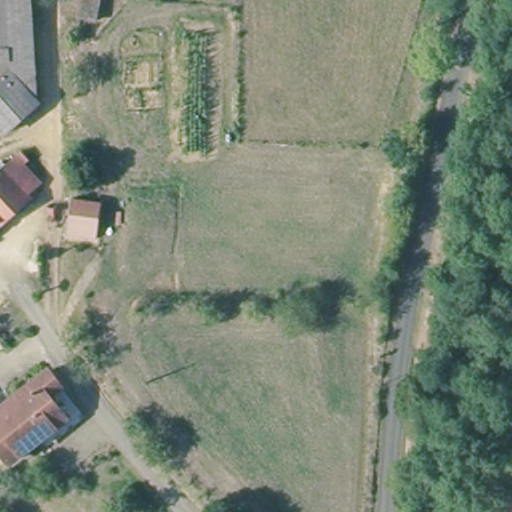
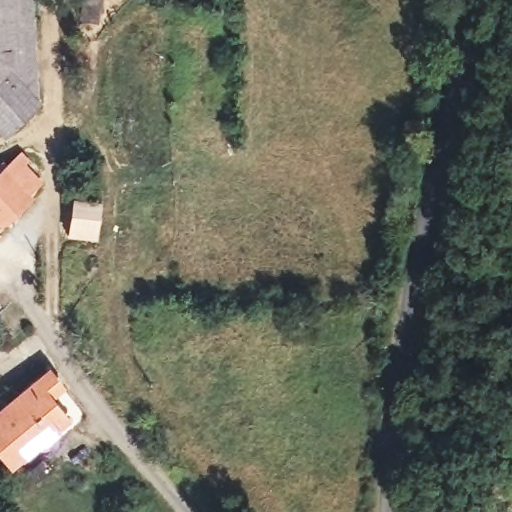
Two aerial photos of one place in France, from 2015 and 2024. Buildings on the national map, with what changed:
unchanged [(37,0),(42,97),(22,115),(5,130),(0,125),(0,0),(37,0)]
unchanged [(69,21),(70,0),(106,0),(102,23),(69,21)]
unchanged [(2,162),(7,168),(18,160),(26,153),(34,164),(30,168),(45,185),(40,189),(0,226),(0,164),(2,162)]
unchanged [(99,244),(68,240),(72,197),(103,201),(99,244)]
unchanged [(1,232),(0,233),(0,230),(1,232)]
unchanged [(61,384),(50,394),(66,418),(10,461),(0,446),(0,406),(47,369),(61,384)]

